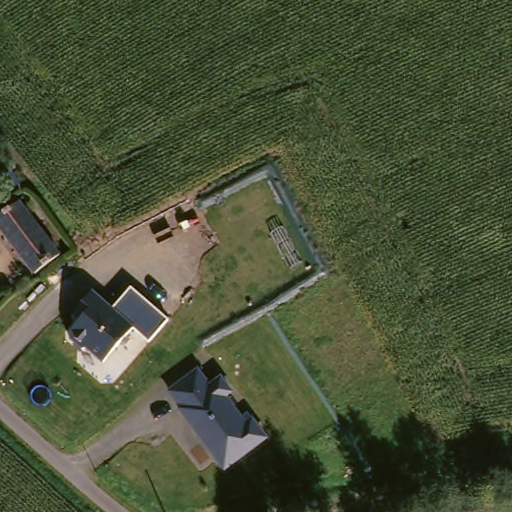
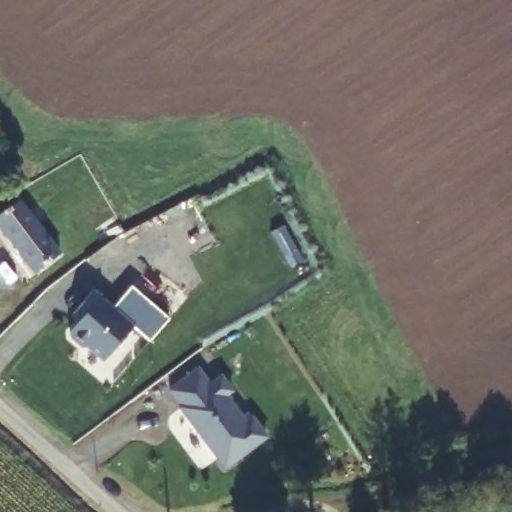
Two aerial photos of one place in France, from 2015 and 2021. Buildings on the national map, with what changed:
unchanged [(0,232),(0,211),(16,198),(56,254),(30,274),(0,232)]
unchanged [(149,342),(134,329),(111,307),(131,286),(169,320),(149,342)]
unchanged [(71,330),(80,319),(71,309),(93,291),(134,329),(101,360),(71,330)]
unchanged [(168,394),(198,370),(208,382),(220,372),(234,391),(227,396),(243,420),(250,415),(268,437),(225,468),(168,394)]

